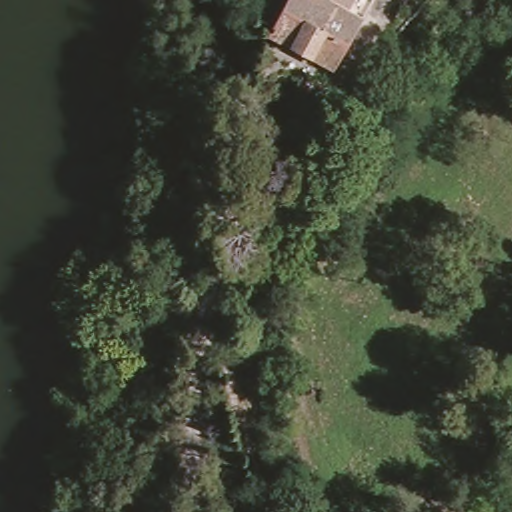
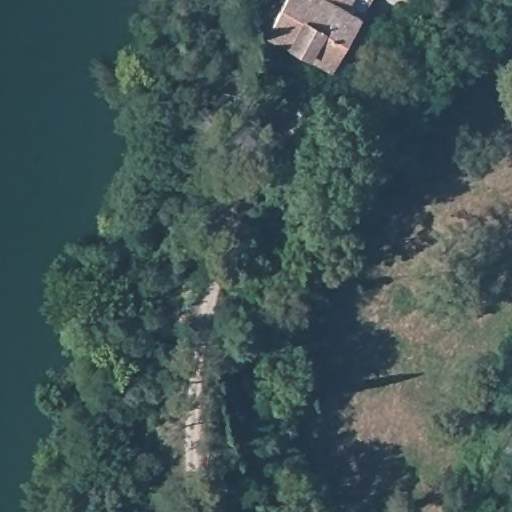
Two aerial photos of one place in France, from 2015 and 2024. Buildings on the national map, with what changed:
unchanged [(294,47),(286,44),(265,32),(281,0),(366,0),(331,67),(294,47)]

